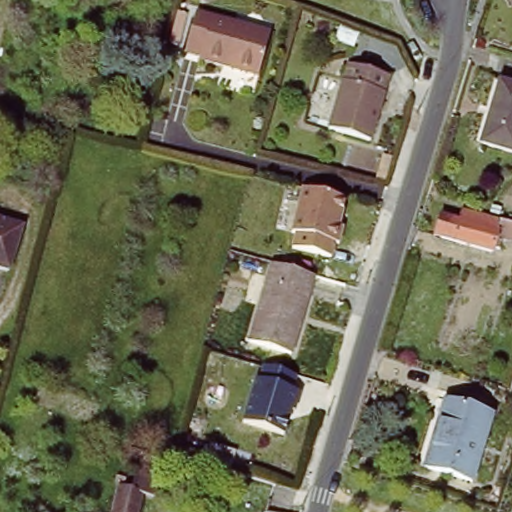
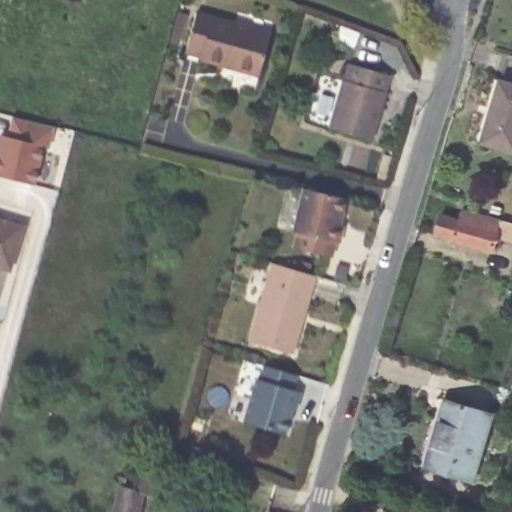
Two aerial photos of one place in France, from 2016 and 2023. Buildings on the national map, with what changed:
unchanged [(277,29),(265,69),(206,53),(207,51),(192,46),(203,7),(277,29)]
unchanged [(390,76),(370,140),(330,127),(350,63),(390,76)]
unchanged [(512,87),(512,153),(482,143),(500,83),(512,87)]
new [(0,177),(0,134),(7,136),(11,116),(52,127),(47,147),(40,147),(32,185),(0,177)]
unchanged [(347,197),(335,255),(289,245),(300,187),(347,197)]
unchanged [(429,231),(436,208),(454,212),(459,205),(512,220),(512,239),(500,236),(498,245),(490,244),(490,249),(429,231)]
unchanged [(10,267),(0,264),(0,216),(23,224),(10,267)]
unchanged [(250,338),(273,261),(314,272),(292,350),(250,338)]
unchanged [(296,372),(292,386),(301,388),(295,409),(289,408),(282,432),(242,417),(258,363),(296,372)]
unchanged [(447,400),(494,416),(473,481),(425,466),(447,400)]
unchanged [(207,466),(212,451),(237,458),(232,474),(207,466)]
unchanged [(114,512),(120,487),(145,495),(141,512),(114,512)]
unchanged [(216,512),(211,512),(199,510),(200,501),(217,504),(216,512)]

